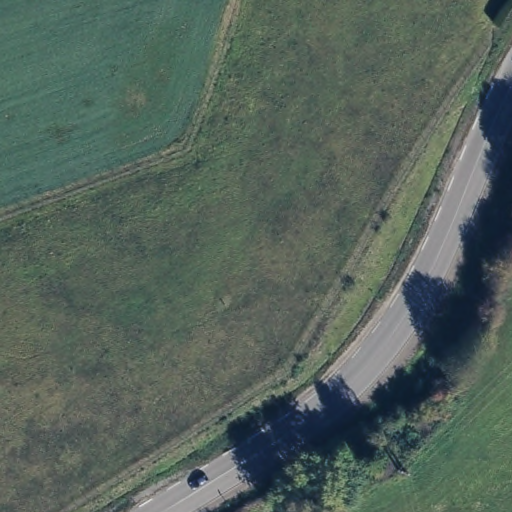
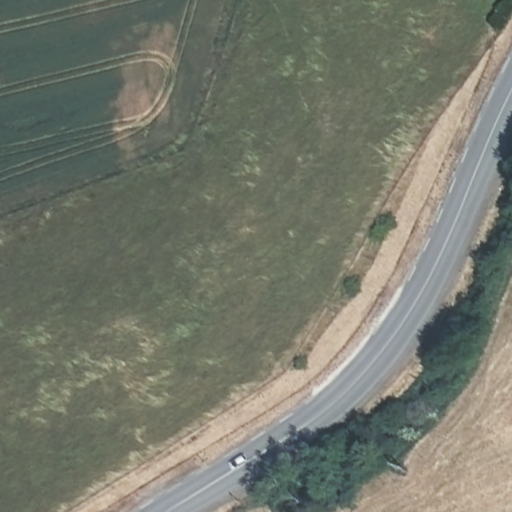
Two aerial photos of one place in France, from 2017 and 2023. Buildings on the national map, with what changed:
unchanged [(262,506),(266,512),(253,512),(262,506)]

